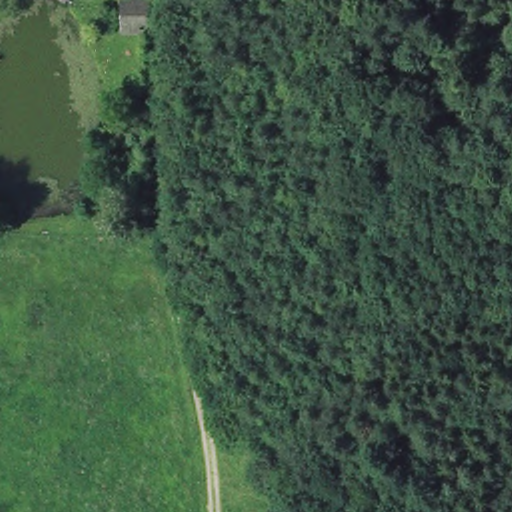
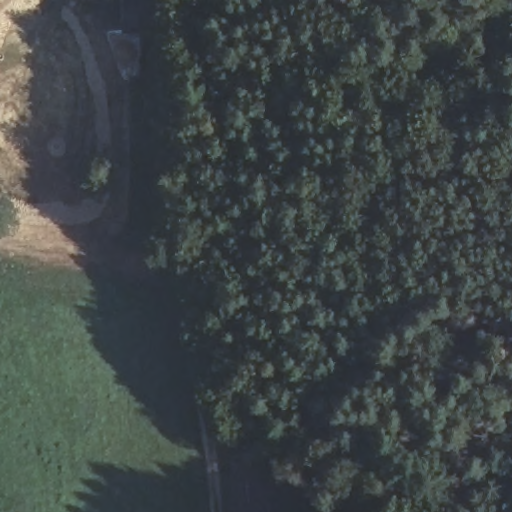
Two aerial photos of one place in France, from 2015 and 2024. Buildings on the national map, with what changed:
unchanged [(126,0),(145,0),(145,32),(126,31),(126,0)]

